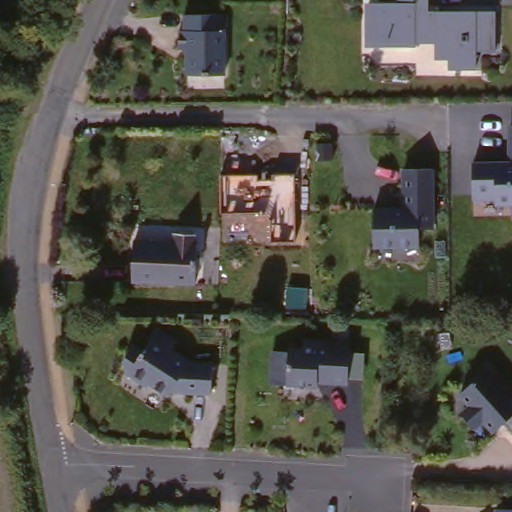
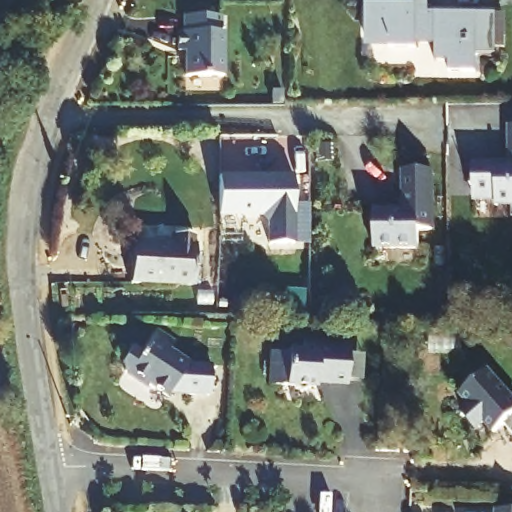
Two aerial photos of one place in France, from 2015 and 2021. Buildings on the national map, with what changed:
unchanged [(399,4),(399,0),(415,0),(415,13),(425,13),(428,13),(428,10),(474,10),(494,10),(494,49),(475,49),(474,68),(448,68),(448,57),(435,57),(435,35),(425,35),(415,35),(415,44),(389,44),(389,39),(368,39),(368,4),(399,4)]
unchanged [(223,74),(185,74),(185,48),(178,48),(178,30),(183,30),(183,14),(220,14),(220,30),(223,30),(223,74)]
unchanged [(512,123),(512,216),(509,216),(509,204),(493,205),(493,194),(470,194),(470,180),(470,161),(508,161),(508,123),(512,123)]
unchanged [(377,209),(407,209),(406,180),(406,169),(435,169),(435,180),(435,229),(422,229),(422,247),(377,247),(377,209)]
new [(218,174),(256,174),(256,179),(271,179),(270,174),(292,173),(293,242),(268,242),(268,219),(261,212),(218,212),(218,174)]
unchanged [(131,282),(133,241),(173,242),(174,232),(195,233),(194,242),(196,245),(193,284),(131,282)]
unchanged [(115,363),(125,348),(134,354),(149,331),(166,343),(161,351),(182,364),(205,366),(203,396),(179,394),(179,392),(164,391),(160,397),(141,385),(140,387),(118,372),(115,363)]
unchanged [(269,352),(287,353),(287,349),(301,350),(302,341),(328,342),(328,346),(347,347),(345,384),(314,382),(314,386),(268,383),(269,352)]
unchanged [(465,405),(454,394),(482,370),(512,403),(512,437),(499,423),(489,432),(478,420),(471,427),(458,412),(465,405)]
unchanged [(491,512),(491,508),(512,509),(512,512),(491,512)]

